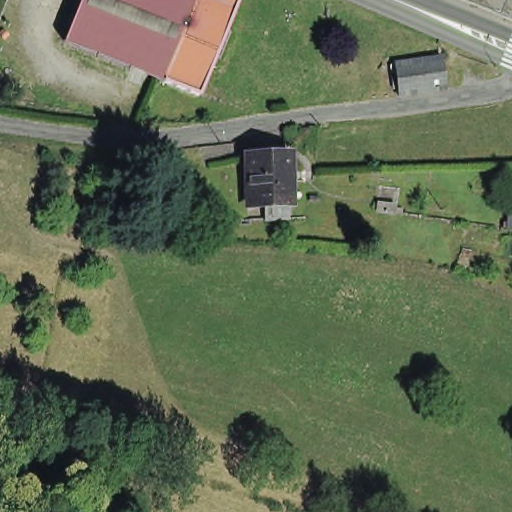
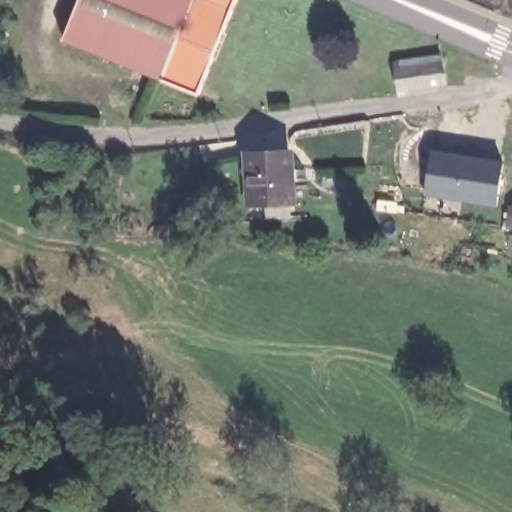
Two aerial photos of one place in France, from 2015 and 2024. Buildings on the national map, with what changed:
unchanged [(161,80),(161,81),(62,42),(79,0),(193,0),(161,80)]
unchanged [(200,89),(197,95),(186,90),(161,80),(193,0),(236,0),(200,89)]
unchanged [(464,0),(512,0),(512,20),(464,0)]
unchanged [(444,92),(396,99),(392,69),(440,62),(444,92)]
unchanged [(260,214),(256,214),(256,205),(256,197),(241,198),(237,150),(280,150),(282,196),(279,196),(279,204),(280,213),(260,214)]
new [(426,194),(431,151),(502,160),(497,208),(426,194)]
unchanged [(511,210),(512,210),(512,226),(510,225),(511,210)]
unchanged [(511,235),(512,236),(512,256),(510,255),(511,235)]

